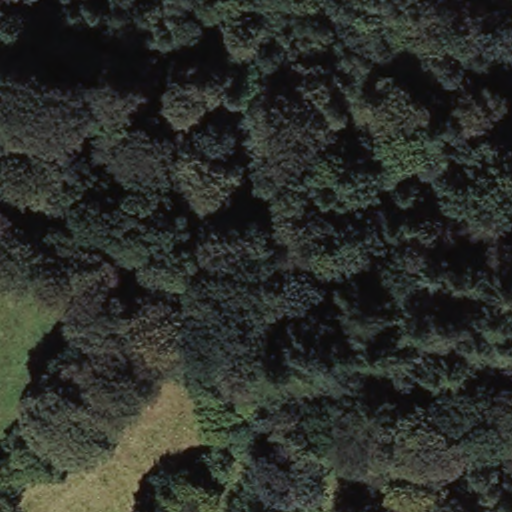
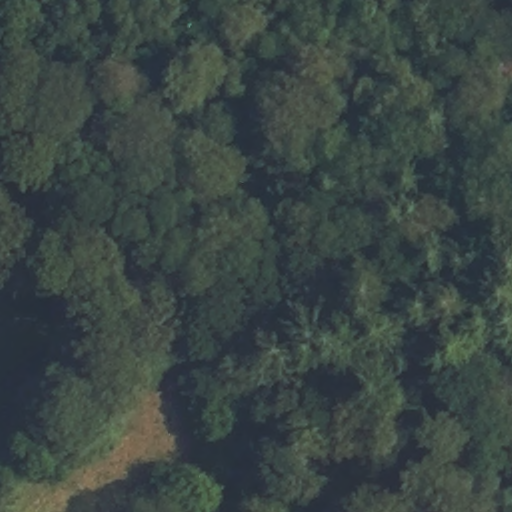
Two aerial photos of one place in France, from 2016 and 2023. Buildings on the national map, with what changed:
unchanged [(512,94),(511,95),(483,65),(505,49),(512,57),(512,94)]

